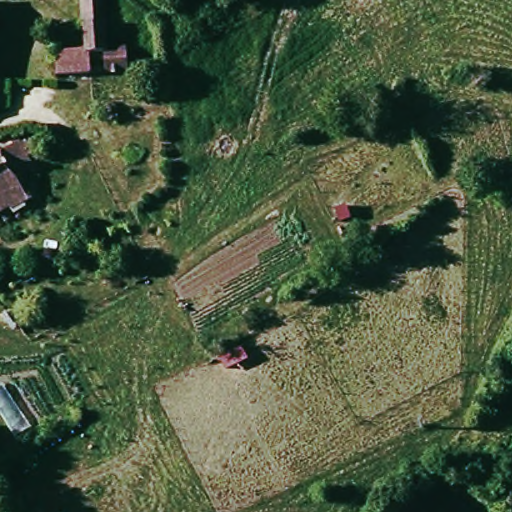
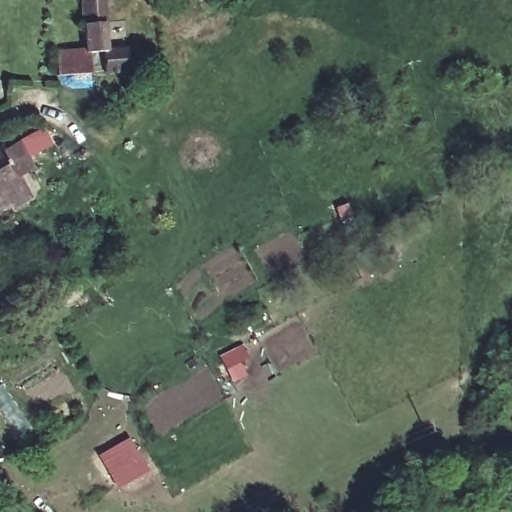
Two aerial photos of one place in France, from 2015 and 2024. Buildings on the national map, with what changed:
unchanged [(134,69),(93,78),(92,72),(57,71),(57,45),(80,47),(81,22),(82,0),(105,0),(105,22),(105,47),(132,46),(134,69)]
unchanged [(15,140),(22,151),(28,164),(12,174),(22,195),(7,205),(5,201),(0,204),(0,149),(15,140)]
new [(118,491),(99,455),(127,440),(147,476),(118,491)]

